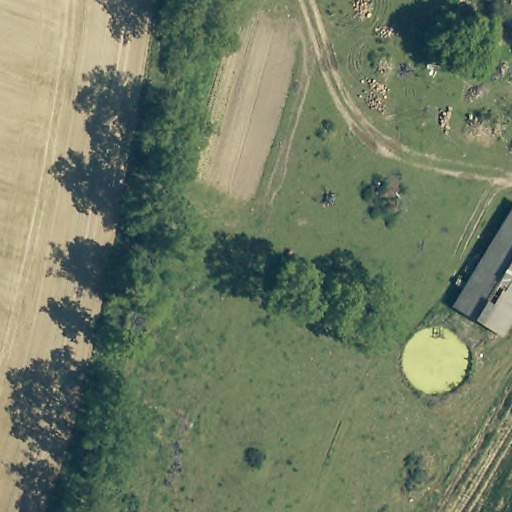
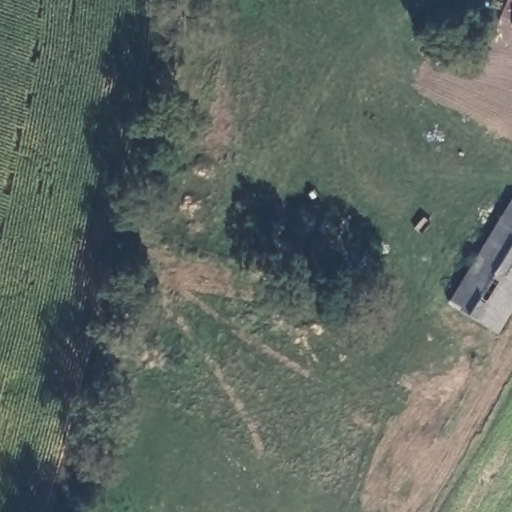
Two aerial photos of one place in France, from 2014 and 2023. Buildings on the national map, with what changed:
unchanged [(452,308),(512,205),(512,309),(497,335),(452,308)]

